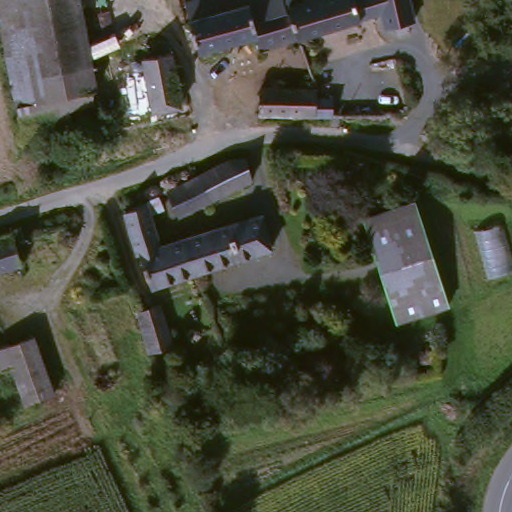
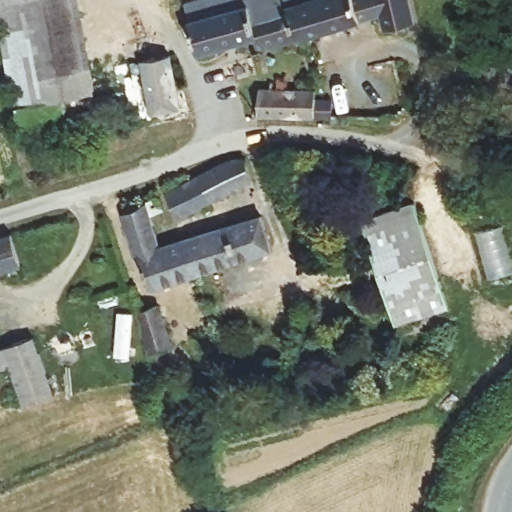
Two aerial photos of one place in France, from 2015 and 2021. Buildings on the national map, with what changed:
unchanged [(0,34),(0,0),(72,0),(97,128),(21,144),(0,34)]
unchanged [(198,52),(189,20),(190,20),(184,0),(282,0),(284,6),(286,5),(297,39),(258,50),(254,36),(198,52)]
unchanged [(379,0),(383,13),(297,39),(286,5),(304,0),(379,0)]
unchanged [(169,60),(179,111),(151,117),(141,64),(169,60)]
unchanged [(326,122),(309,122),(253,120),(254,94),(310,94),(310,104),(327,104),(326,122)]
unchanged [(228,160),(244,159),(251,181),(177,218),(165,192),(228,160)]
unchanged [(271,250),(151,288),(139,255),(136,256),(126,226),(123,212),(146,202),(157,196),(162,209),(149,214),(159,246),(261,216),(271,250)]
unchanged [(448,305),(394,323),(361,220),(414,202),(448,305)]
unchanged [(16,265),(0,270),(0,235),(6,234),(16,265)]
unchanged [(136,318),(159,310),(172,351),(148,359),(136,318)]
unchanged [(11,372),(0,376),(0,353),(33,341),(54,400),(24,410),(11,372)]

